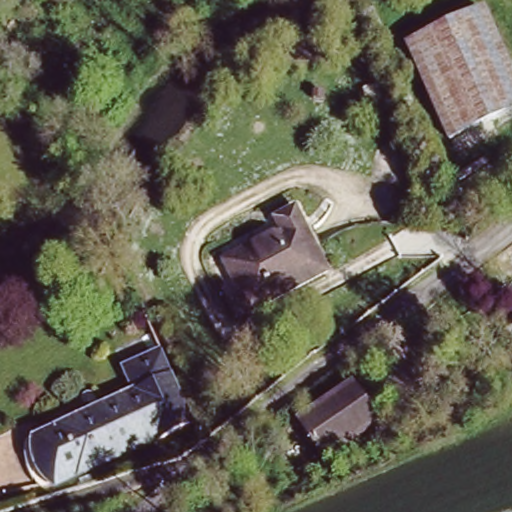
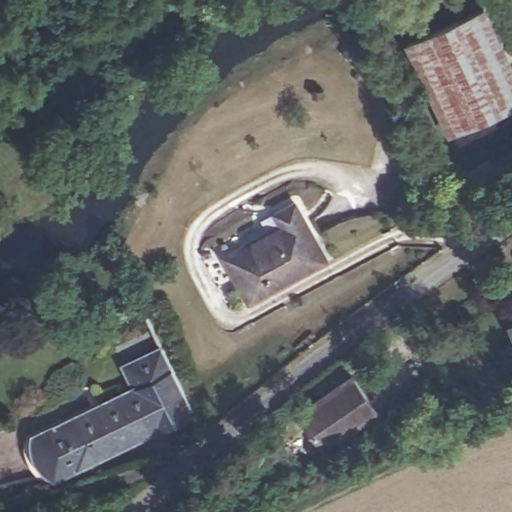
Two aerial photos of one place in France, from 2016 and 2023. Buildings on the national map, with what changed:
unchanged [(479,3),(512,74),(512,101),(448,130),(404,36),(479,3)]
unchanged [(319,265),(241,305),(216,257),(276,226),(271,215),(289,206),(319,265)]
unchanged [(512,325),(512,340),(507,327),(512,325)]
unchanged [(114,441),(116,445),(53,476),(33,436),(101,402),(100,399),(131,383),(120,362),(158,344),(191,412),(154,430),(151,423),(114,441)]
unchanged [(369,420),(319,455),(301,429),(294,419),(322,400),(344,385),(369,420)]

